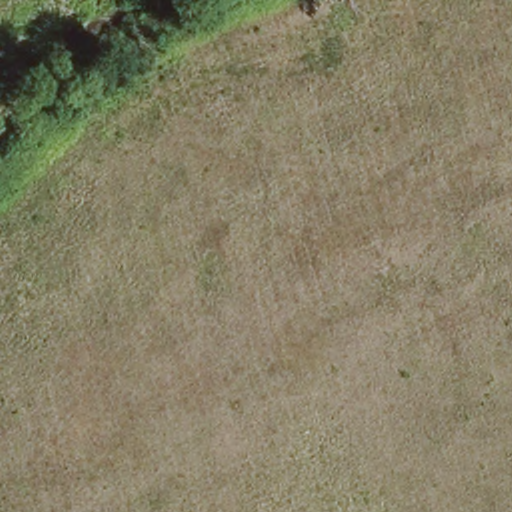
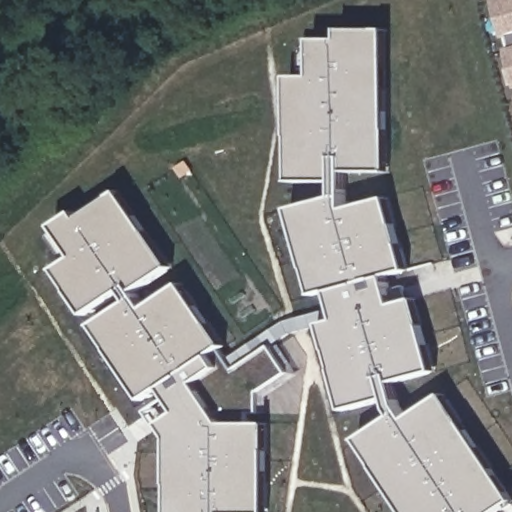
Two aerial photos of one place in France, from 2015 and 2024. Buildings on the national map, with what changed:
new [(508,48),(506,39),(501,40),(490,0),(512,0),(512,85),(503,50),(508,48)]
new [(390,411),(388,400),(345,411),(322,325),(337,320),(330,292),(314,296),(290,209),(336,197),(336,182),(291,182),(291,76),(315,76),(315,40),(343,40),(343,30),(391,30),(392,172),(348,172),(347,209),(390,197),(410,271),(387,277),(395,304),(418,299),(435,370),(393,382),(400,407),(407,418),(445,394),(512,495),(512,504),(500,512),(404,512),(357,440),(395,417),(390,411)]
new [(170,485),(171,440),(161,427),(152,412),(170,400),(163,390),(145,401),(94,325),(130,302),(124,293),(87,316),(57,270),(75,258),(55,227),(79,212),(84,219),(124,192),(175,268),(137,292),(148,308),(185,283),(227,347),(222,351),(236,370),(271,347),(290,374),(260,394),(260,413),(249,413),(255,423),(270,423),(270,512),(170,512),(170,485)]

